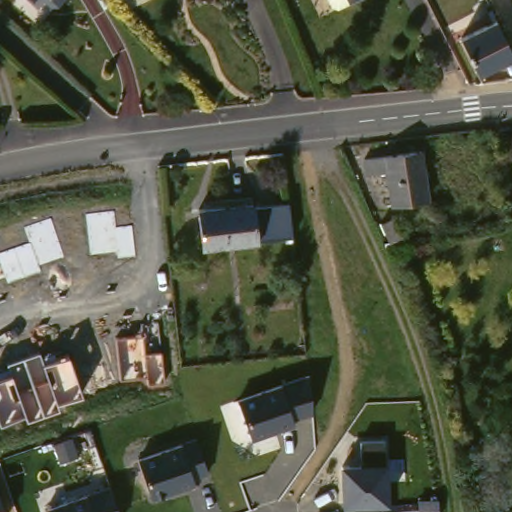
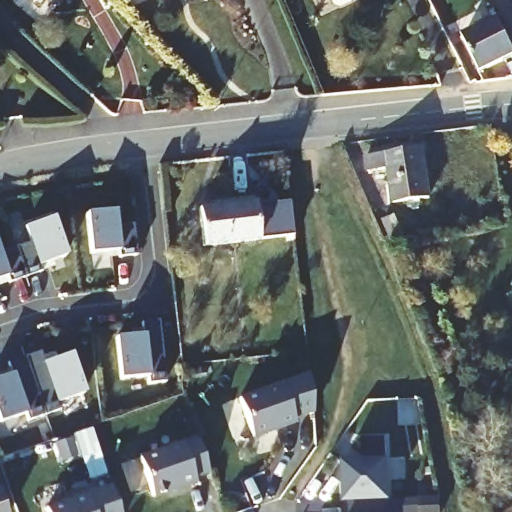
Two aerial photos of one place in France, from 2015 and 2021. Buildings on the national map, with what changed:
unchanged [(512,57),(489,69),(471,34),(507,15),(512,25),(512,57)]
unchanged [(433,194),(397,199),(392,164),(372,167),(370,154),(426,145),(433,194)]
unchanged [(232,204),(232,198),(261,194),(262,204),(297,199),(301,234),(266,238),(266,239),(211,244),(207,207),(232,204)]
unchanged [(104,255),(90,257),(85,215),(113,213),(115,229),(131,227),(134,258),(117,259),(105,261),(104,255)]
unchanged [(393,218),(401,235),(390,241),(381,224),(393,218)]
unchanged [(42,274),(26,279),(16,250),(31,244),(26,229),(52,220),(65,259),(52,263),(54,269),(42,274)]
unchanged [(0,255),(16,250),(26,279),(9,285),(0,288),(0,255)]
new [(165,381),(150,383),(150,376),(119,379),(115,337),(145,333),(144,322),(159,321),(165,381)]
unchanged [(84,395),(58,402),(62,409),(28,421),(25,413),(0,421),(0,376),(12,371),(8,361),(40,350),(45,363),(69,354),(84,395)]
unchanged [(294,418),(296,424),(252,439),(239,399),(309,375),(313,412),(294,418)]
unchanged [(389,503),(382,504),(382,512),(344,512),(344,506),(341,464),(360,463),(359,439),(387,437),(388,464),(389,503)]
unchanged [(193,479),(196,484),(152,498),(139,459),(197,439),(209,473),(193,479)]
unchanged [(47,511),(87,496),(86,492),(109,484),(119,512),(47,512),(47,511)]
unchanged [(5,512),(0,512),(0,498),(5,512)]

